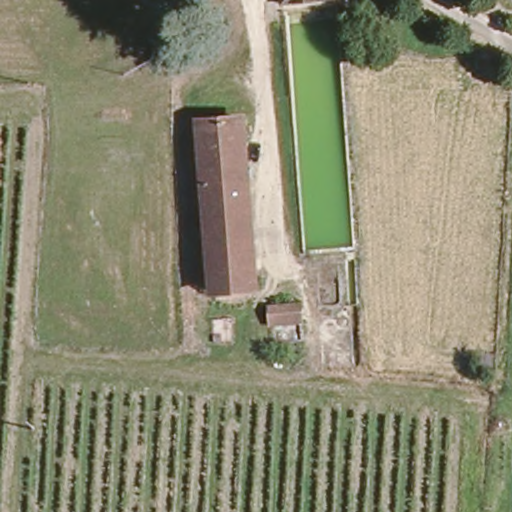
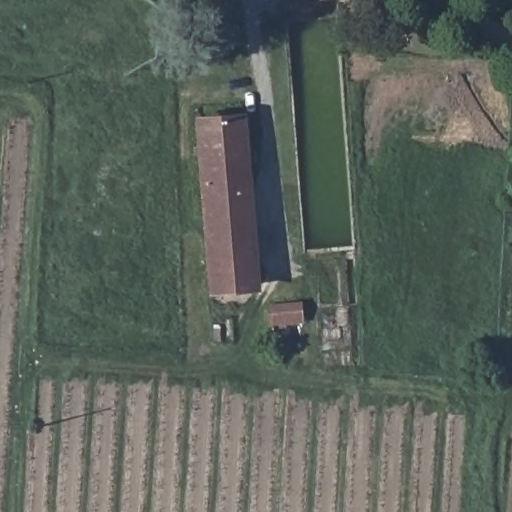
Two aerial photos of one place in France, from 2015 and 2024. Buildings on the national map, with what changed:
unchanged [(328,6),(285,5),(285,0),(329,0),(328,6)]
unchanged [(201,117),(239,114),(252,281),(216,285),(201,117)]
unchanged [(296,306),(298,325),(269,328),(267,309),(296,306)]

